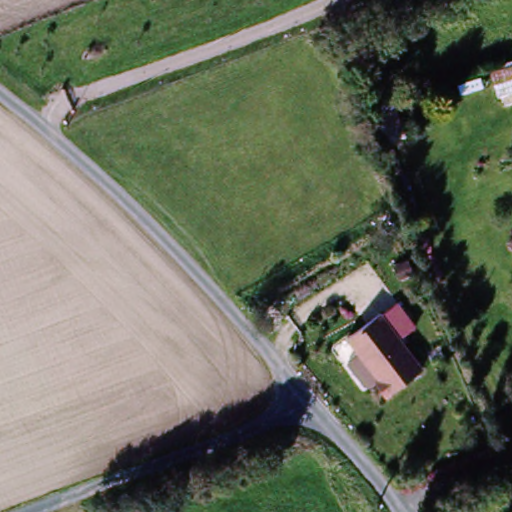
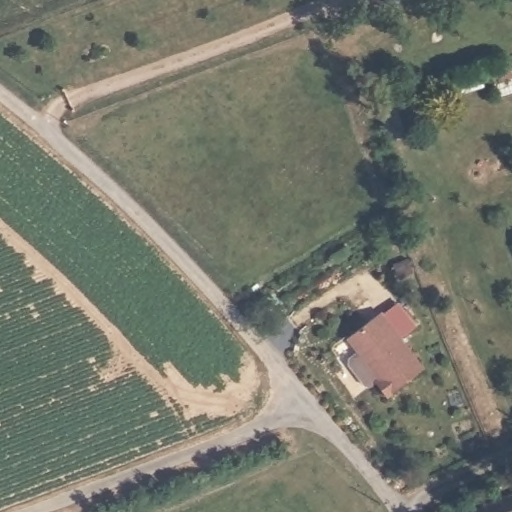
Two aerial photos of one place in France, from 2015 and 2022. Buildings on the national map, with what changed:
unchanged [(429,80),(498,55),(501,66),(512,63),(512,93),(499,97),(489,74),(454,84),(457,99),(437,108),(429,80)]
unchanged [(381,104),(396,98),(406,124),(392,131),(381,104)]
unchanged [(422,366),(379,396),(369,382),(374,378),(344,335),(380,309),(422,366)]
unchanged [(512,490),(512,512),(467,512),(465,508),(512,490)]

